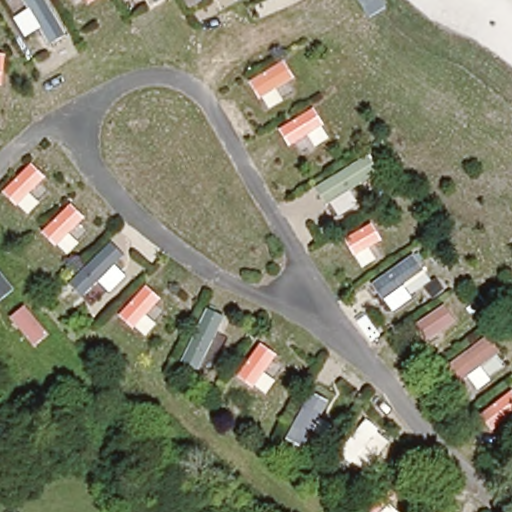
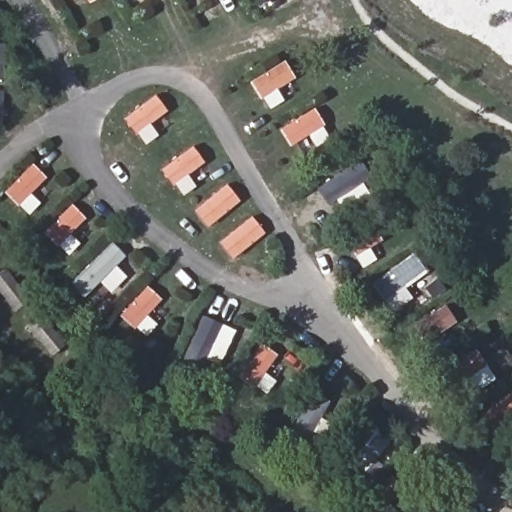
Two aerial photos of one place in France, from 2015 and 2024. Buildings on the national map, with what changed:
unchanged [(49,44),(23,0),(45,0),(66,34),(49,44)]
unchanged [(89,0),(97,0),(91,4),(89,0)]
unchanged [(0,54),(6,55),(4,85),(0,85),(0,54)]
unchanged [(295,77),(277,90),(284,101),(269,109),(253,82),(284,62),(295,77)]
unchanged [(330,138),(315,147),(308,136),(291,146),(281,129),(313,109),(330,138)]
unchanged [(361,159),(370,178),(327,203),(317,185),(361,159)]
unchanged [(48,177),(31,193),(41,204),(30,217),(3,192),(31,165),(48,177)]
unchanged [(87,220),(73,235),(80,245),(66,256),(45,232),(72,205),(87,220)]
unchanged [(369,221),(380,238),(346,258),(337,241),(369,221)]
unchanged [(124,256),(79,298),(65,284),(109,241),(124,256)]
unchanged [(410,252),(422,268),(381,297),(371,281),(410,252)]
unchanged [(148,314),(156,323),(145,336),(120,317),(147,286),(161,298),(148,314)]
unchanged [(426,343),(415,327),(443,304),(456,321),(426,343)]
unchanged [(204,305),(224,315),(197,370),(178,360),(204,305)]
unchanged [(487,334),(499,350),(457,383),(444,364),(487,334)]
unchanged [(249,343),(265,353),(237,402),(221,392),(249,343)]
unchanged [(309,388),(328,399),(302,448),(283,438),(309,388)]
unchanged [(512,393),(512,414),(495,428),(482,414),(511,392),(512,393)]
unchanged [(395,445),(365,476),(341,453),(370,420),(395,445)]

